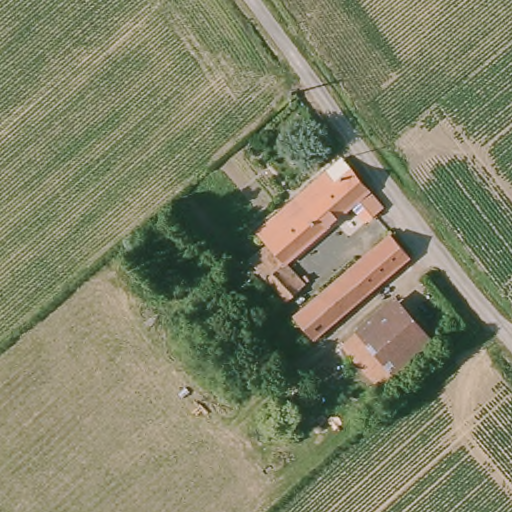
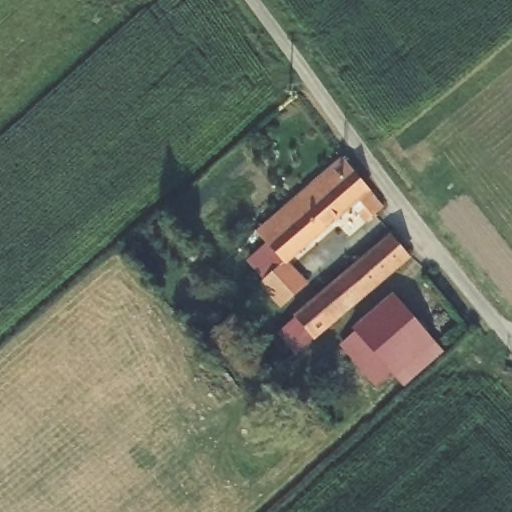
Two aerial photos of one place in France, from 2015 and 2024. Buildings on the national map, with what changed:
unchanged [(295,297),(282,308),(247,267),(262,254),(252,241),(322,182),(330,192),(351,175),(380,212),(365,224),(353,210),(278,274),(295,297)]
unchanged [(300,317),(390,241),(405,259),(313,336),(300,317)]
unchanged [(397,304),(430,345),(376,388),(344,347),(397,304)]
unchanged [(231,316),(247,335),(230,349),(214,329),(231,316)]

